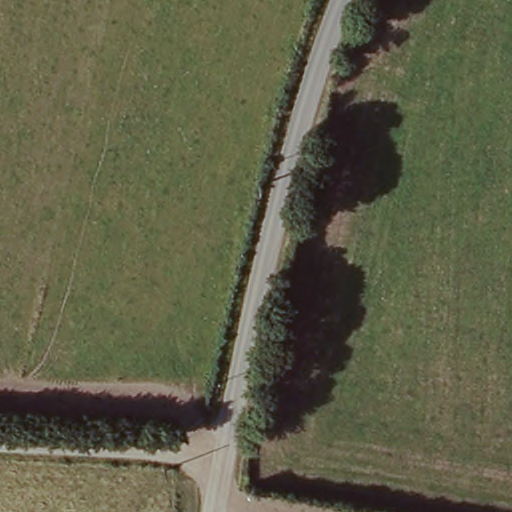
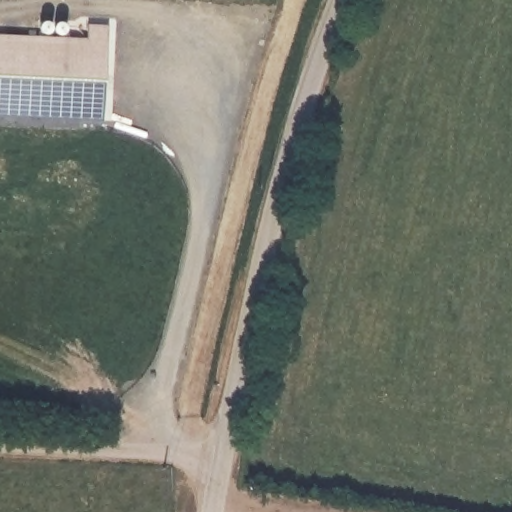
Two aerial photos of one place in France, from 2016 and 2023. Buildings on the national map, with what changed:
new [(120,35),(125,139),(0,138),(0,33),(120,35)]

